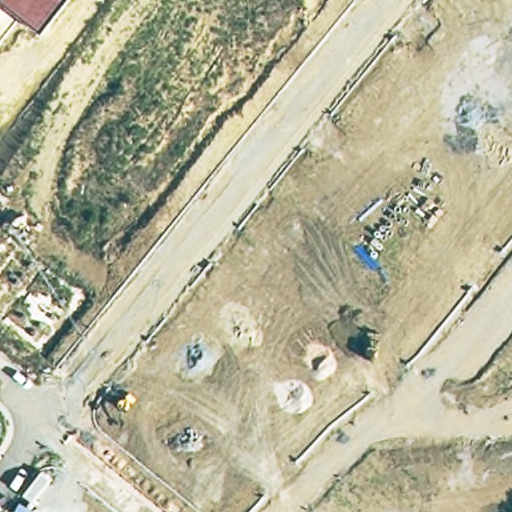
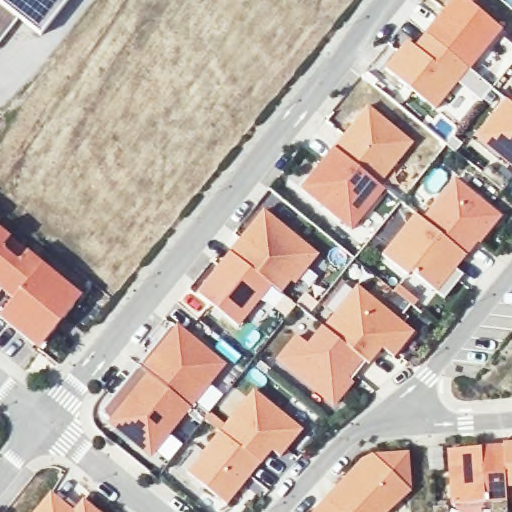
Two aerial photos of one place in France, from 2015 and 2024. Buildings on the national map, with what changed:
unchanged [(20,19),(0,45),(0,1),(1,0),(73,0),(45,36),(20,19)]
new [(457,82),(435,110),(383,69),(406,40),(414,47),(425,35),(454,0),(465,0),(501,30),(467,69),(491,89),(481,102),(457,82)]
new [(498,57),(493,52),(505,39),(512,45),(512,64),(498,80),(488,70),(498,57)]
new [(473,137),(505,98),(509,102),(512,104),(512,169),(473,137)]
new [(512,98),(512,104),(509,102),(512,98)]
new [(391,126),(412,142),(407,149),(378,183),(333,147),(366,106),(391,126)]
new [(378,183),(385,189),(350,231),(300,189),(333,147),(378,183)]
new [(455,178),(501,216),(480,243),(477,241),(465,255),(422,220),(455,178)]
new [(295,283),(291,281),(281,292),(271,284),(230,250),(262,209),(318,254),(295,283)]
new [(422,220),(465,255),(454,269),(461,275),(444,297),(413,272),(409,277),(382,255),(415,214),(422,220)]
new [(1,291),(0,292),(0,229),(41,263),(12,300),(1,291)]
new [(238,325),(196,291),(230,250),(271,284),(238,325)]
new [(41,263),(81,296),(38,350),(0,319),(0,315),(12,300),(41,263)]
new [(324,327),(356,287),(402,323),(380,351),(378,348),(366,362),(324,327)]
new [(175,323),(226,366),(191,408),(140,367),(175,323)]
new [(307,344),(321,327),(324,327),(366,362),(333,406),(275,361),(295,335),(307,344)]
new [(100,415),(140,367),(191,408),(151,457),(100,415)]
new [(251,389),(302,430),(280,457),(272,450),(260,463),(218,430),(251,389)]
new [(227,506),(185,472),(218,430),(260,463),(227,506)]
new [(507,485),(504,446),(512,445),(512,484),(507,485)]
new [(504,446),(507,485),(507,502),(449,506),(446,450),(504,446)]
new [(325,498),(360,460),(370,455),(407,452),(410,492),(389,512),(340,512),(325,498)]
new [(52,492),(75,512),(85,499),(101,512),(37,512),(52,492)]
new [(340,512),(312,512),(325,498),(340,512)]

